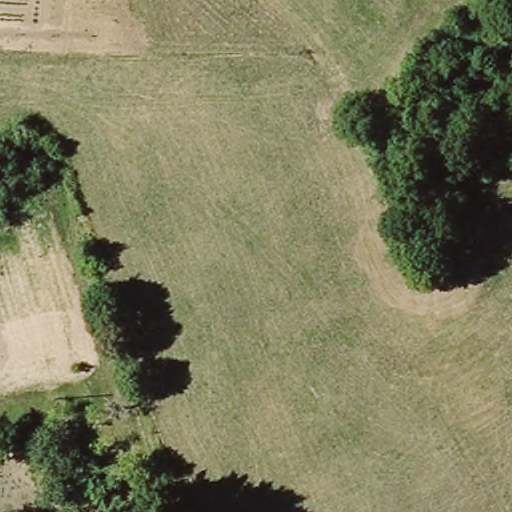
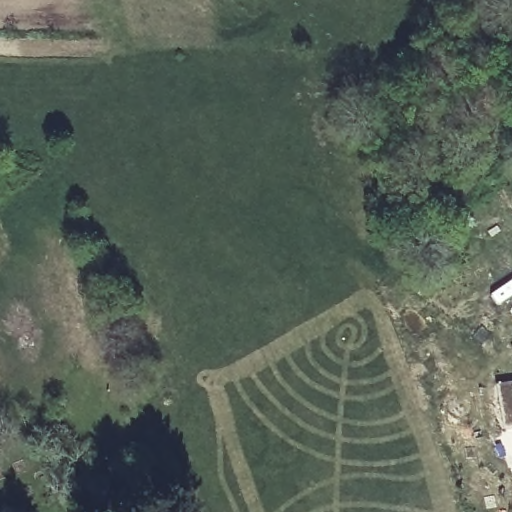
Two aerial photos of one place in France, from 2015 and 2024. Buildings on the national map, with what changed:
new [(512,386),(512,426),(507,427),(500,387),(512,386)]

